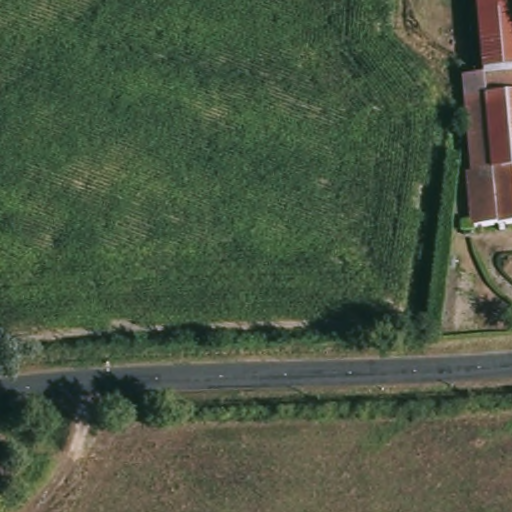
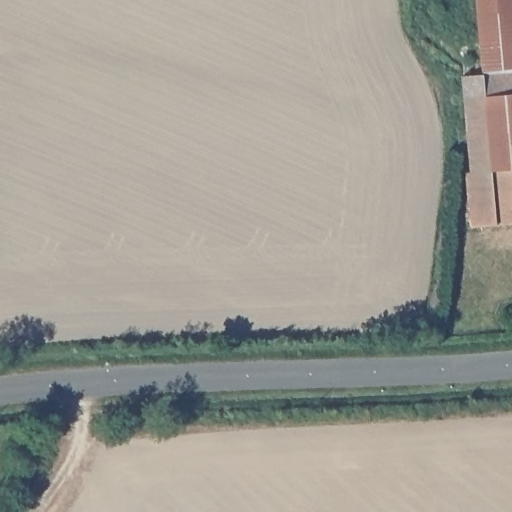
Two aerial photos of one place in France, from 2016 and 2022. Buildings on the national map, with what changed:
unchanged [(483,64),(480,0),(512,0),(512,64),(483,64)]
unchanged [(512,73),(512,135),(463,138),(461,75),(512,73)]
unchanged [(512,135),(512,170),(464,173),(463,138),(512,135)]
unchanged [(464,173),(512,170),(512,228),(464,230),(462,173),(464,173)]

